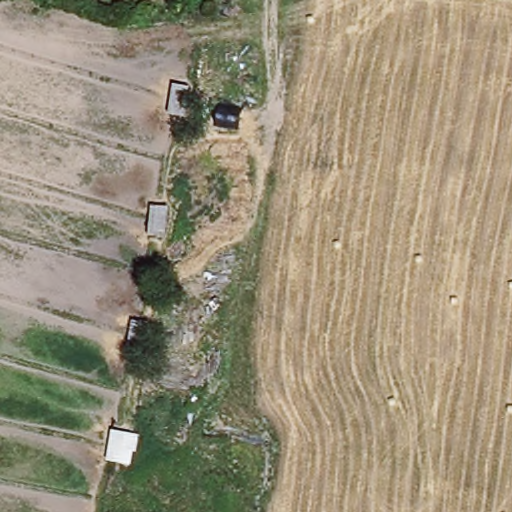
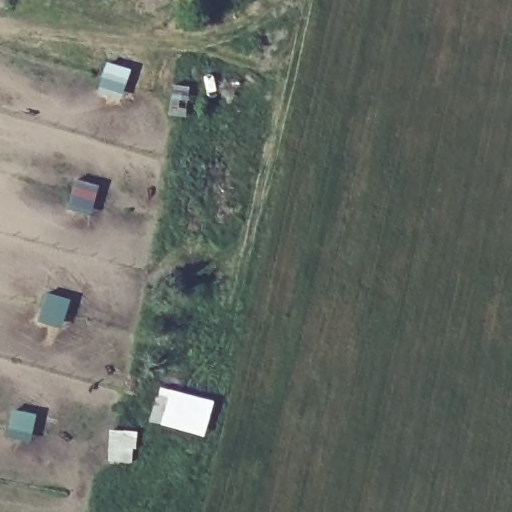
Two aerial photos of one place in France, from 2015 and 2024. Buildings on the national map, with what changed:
new [(148,422),(158,387),(212,403),(202,438),(148,422)]

